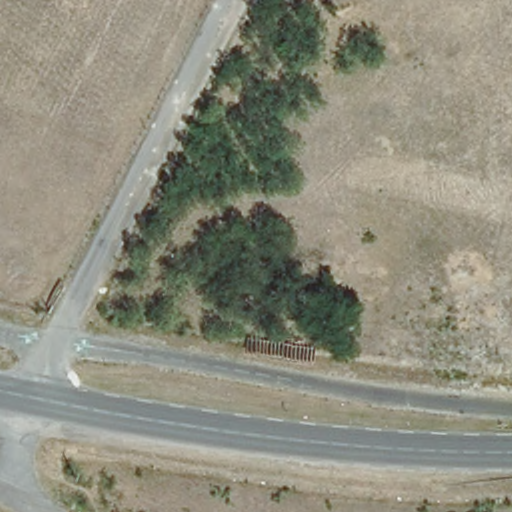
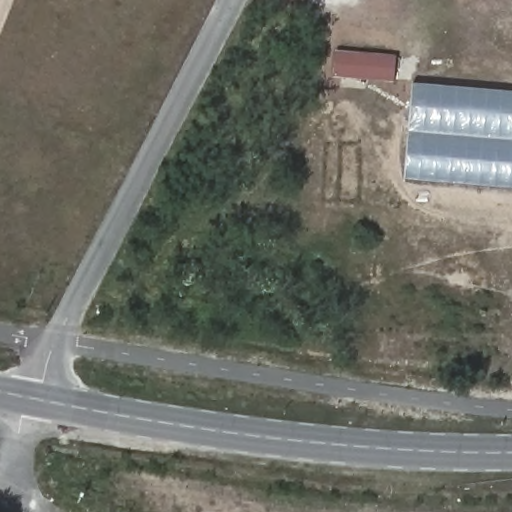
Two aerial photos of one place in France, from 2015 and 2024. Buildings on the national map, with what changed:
new [(399,55),(397,80),(336,74),(338,51),(399,55)]
new [(512,94),(512,190),(406,181),(413,86),(512,94)]

